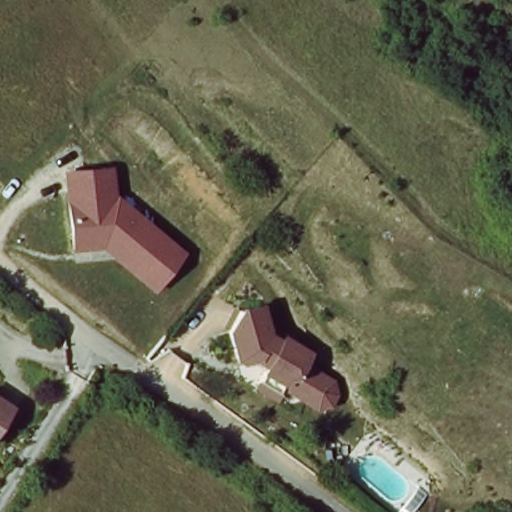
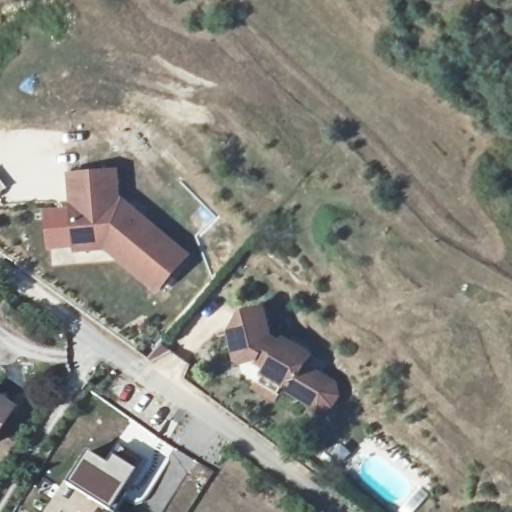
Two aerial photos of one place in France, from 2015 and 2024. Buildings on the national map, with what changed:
unchanged [(120,168),(123,200),(191,253),(160,294),(108,251),(76,253),(69,171),(120,168)]
unchanged [(274,330),(314,351),(308,362),(345,385),(328,414),(284,389),(278,400),(253,388),(264,365),(243,371),(229,328),(268,303),(274,330)]
unchanged [(16,408),(0,431),(0,397),(16,408)]
new [(85,452),(107,466),(113,457),(135,471),(109,512),(108,512),(65,484),(85,452)]

